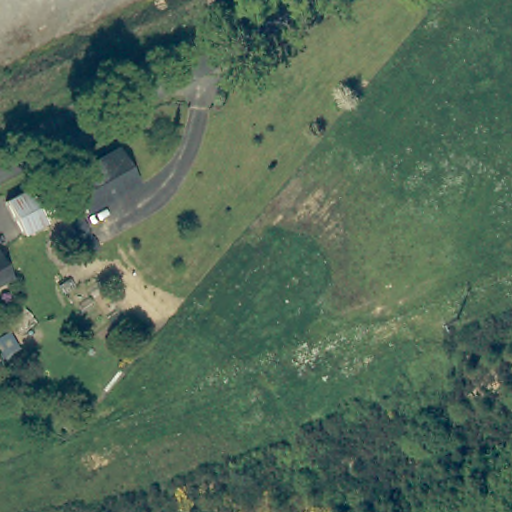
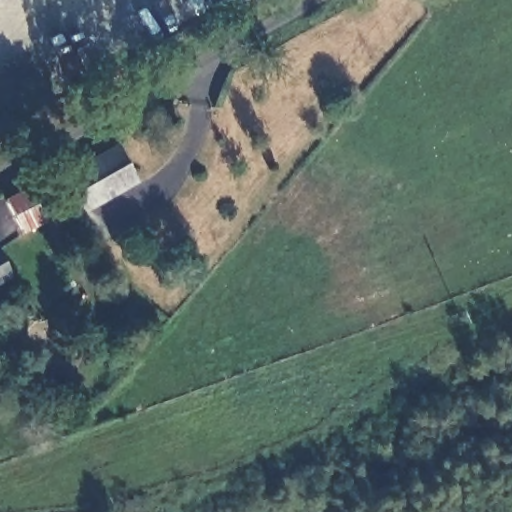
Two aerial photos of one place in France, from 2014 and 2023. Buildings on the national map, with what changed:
unchanged [(137,187),(83,215),(62,177),(118,150),(137,187)]
unchanged [(5,200),(26,189),(45,221),(22,232),(5,200)]
unchanged [(10,277),(0,283),(0,256),(10,277)]
unchanged [(0,364),(0,320),(1,319),(17,347),(14,351),(20,362),(5,371),(0,364)]

